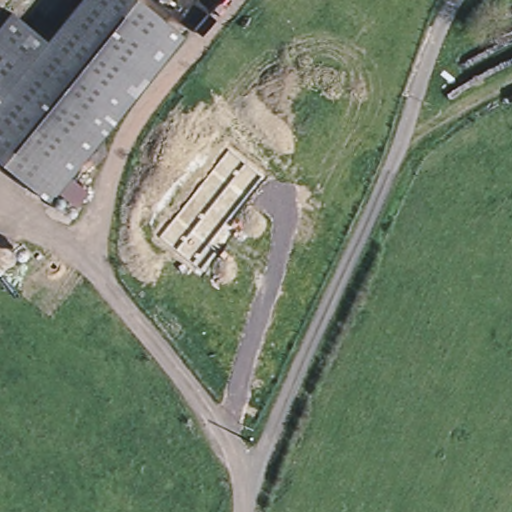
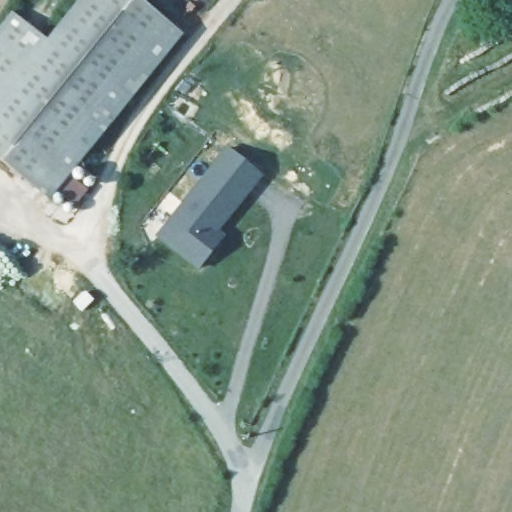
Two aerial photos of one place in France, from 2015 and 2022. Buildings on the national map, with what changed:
unchanged [(83,0),(137,0),(182,36),(50,202),(0,163),(0,32),(12,16),(47,44),(83,0)]
new [(262,175),(219,231),(225,236),(199,270),(155,235),(226,146),(262,175)]

